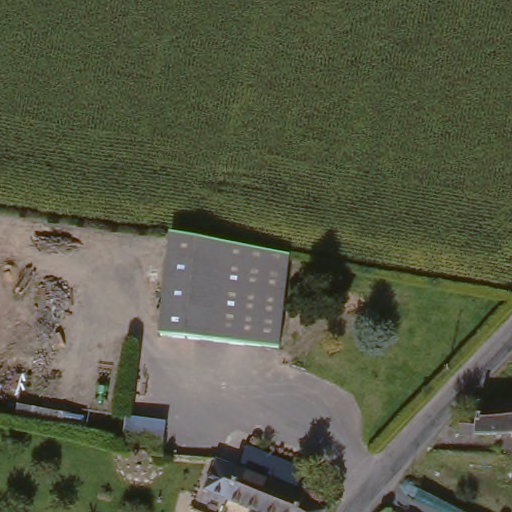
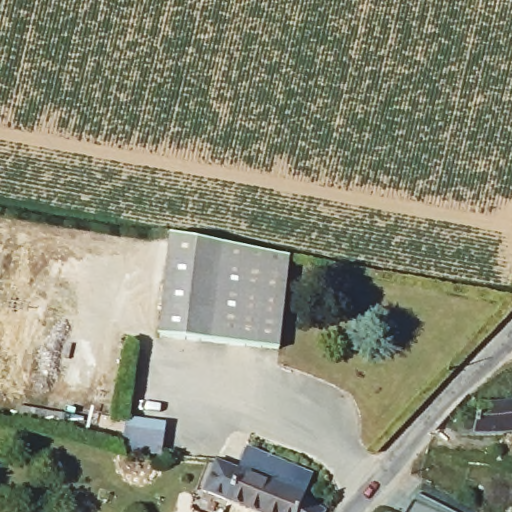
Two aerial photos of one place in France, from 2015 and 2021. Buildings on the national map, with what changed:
unchanged [(278,350),(159,334),(172,234),(278,253),(290,256),(278,350)]
unchanged [(459,423),(474,422),(474,408),(512,405),(512,436),(461,441),(459,423)]
unchanged [(129,412),(169,417),(162,457),(121,451),(129,412)]
unchanged [(207,488),(217,456),(237,432),(250,437),(248,442),(313,469),(304,491),(324,507),(320,512),(266,512),(207,488)]

